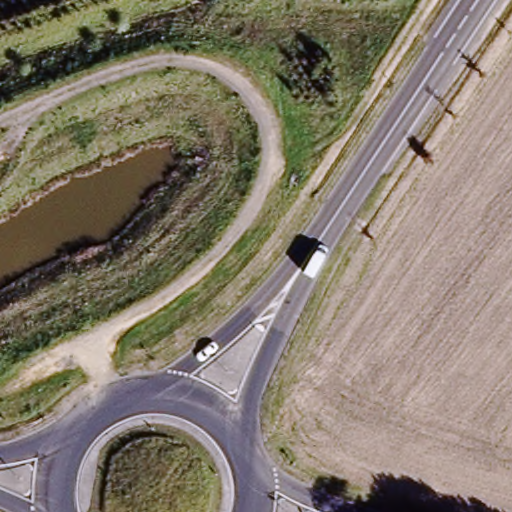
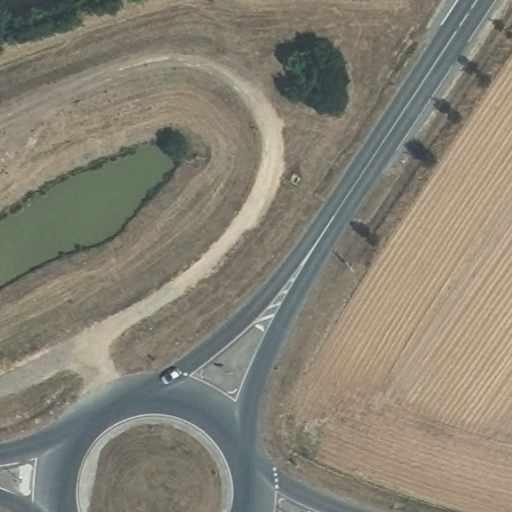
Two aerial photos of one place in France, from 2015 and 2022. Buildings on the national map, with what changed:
[]

